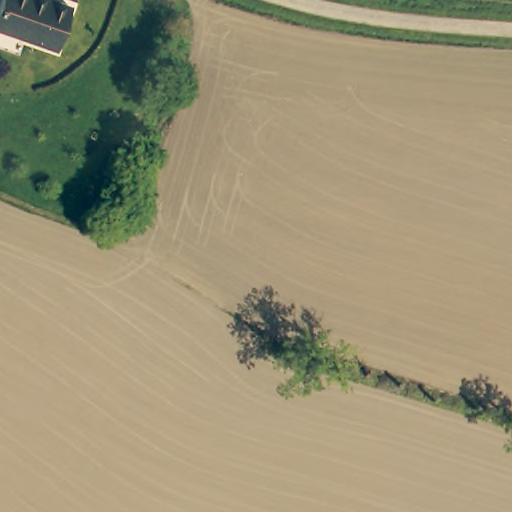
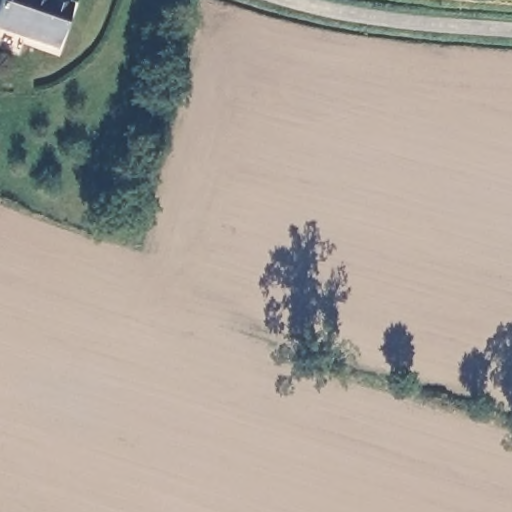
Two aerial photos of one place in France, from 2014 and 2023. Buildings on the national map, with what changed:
unchanged [(69,2),(55,43),(0,25),(0,9),(3,0),(63,0),(69,2)]

